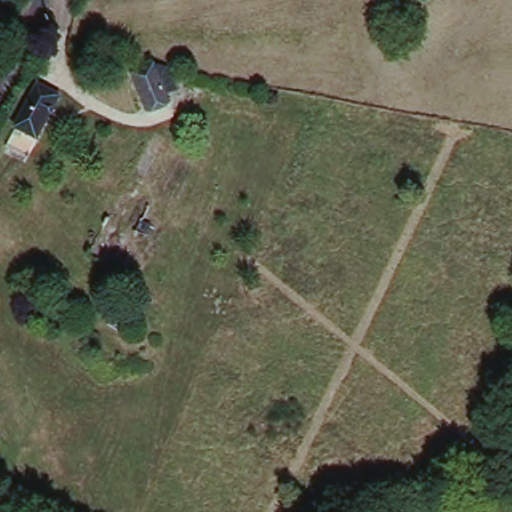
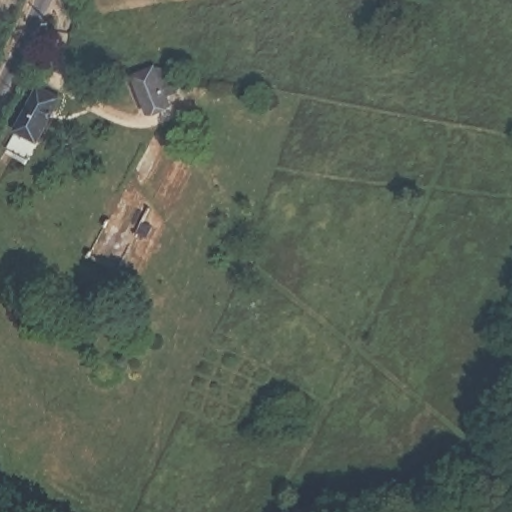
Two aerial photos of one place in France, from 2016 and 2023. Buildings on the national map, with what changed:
unchanged [(161,65),(166,76),(159,80),(166,100),(144,109),(131,77),(161,65)]
unchanged [(19,123),(38,80),(66,91),(44,139),(36,158),(10,146),(19,123)]

